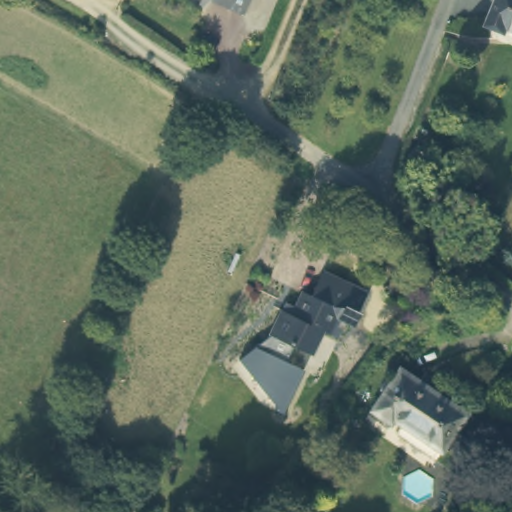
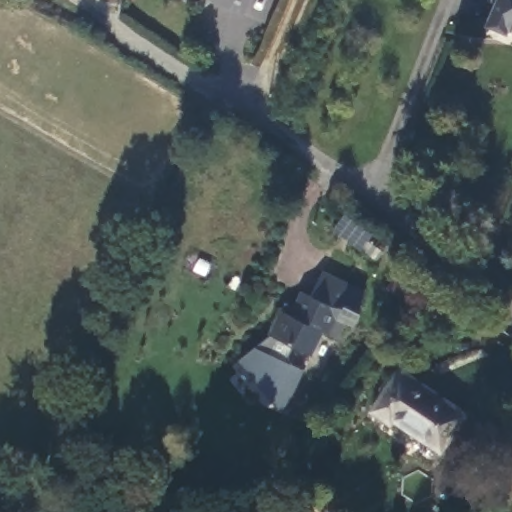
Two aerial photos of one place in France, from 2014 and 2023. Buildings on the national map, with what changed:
unchanged [(214,4),(216,0),(253,0),(245,17),(214,4)]
unchanged [(512,0),(512,30),(509,29),(506,34),(487,25),(497,0),(512,0)]
unchanged [(385,252),(377,263),(332,231),(340,219),(385,252)]
unchanged [(352,316),(341,310),(338,316),(346,321),(337,337),(323,331),(310,357),(270,336),(285,303),(295,307),(303,293),(309,296),(321,272),(340,282),(363,293),(352,316)]
unchanged [(293,347),(286,357),(289,363),(304,371),(284,416),(239,360),(270,336),(293,347)]
unchanged [(394,421),(390,426),(370,411),(397,370),(446,402),(465,416),(441,452),(394,421)]

